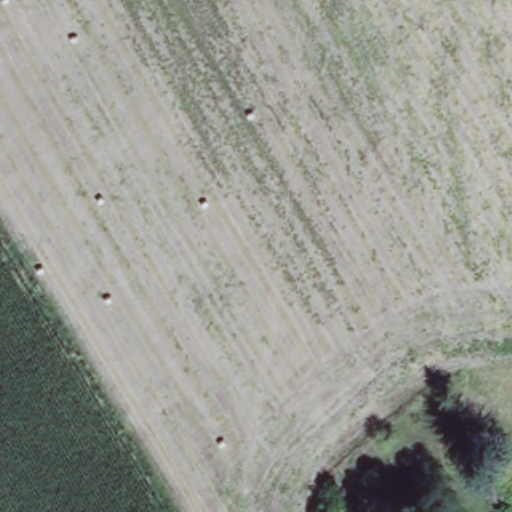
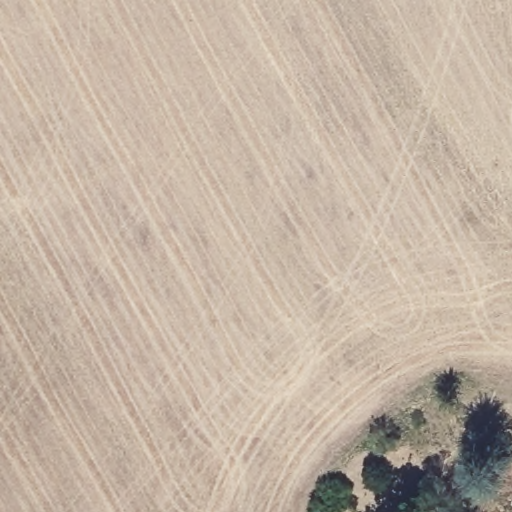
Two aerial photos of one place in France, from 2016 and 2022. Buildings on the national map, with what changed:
[]

